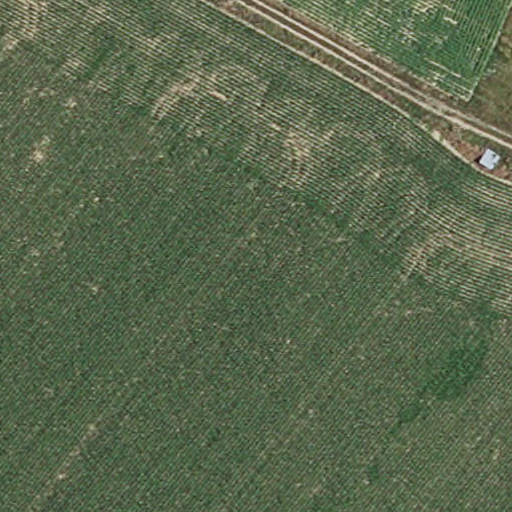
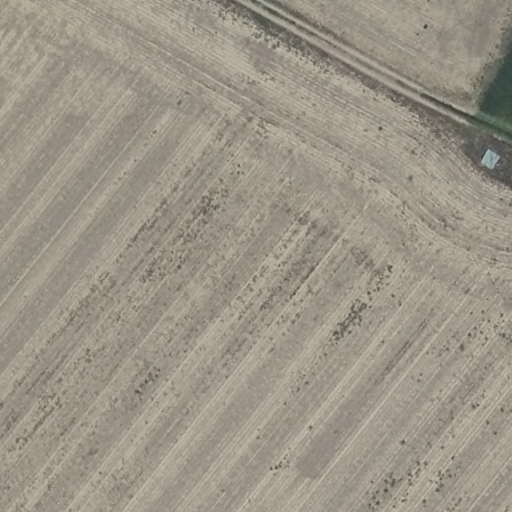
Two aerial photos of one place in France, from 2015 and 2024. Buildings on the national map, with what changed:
[]

